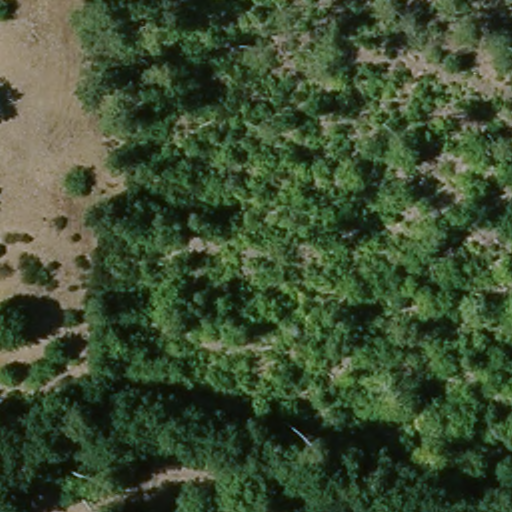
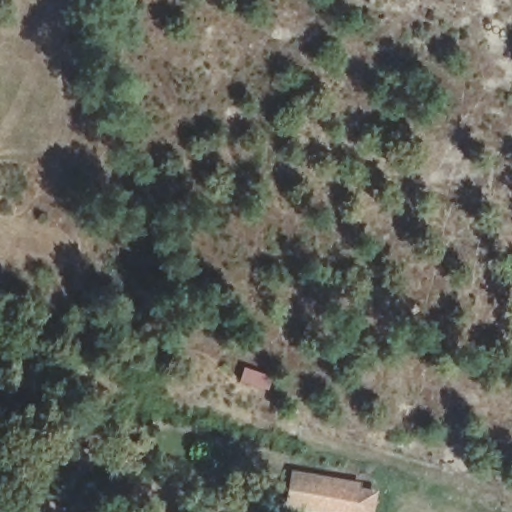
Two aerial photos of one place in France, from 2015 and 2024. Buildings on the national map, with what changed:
new [(372,484),(366,512),(345,512),(284,505),(291,469),(372,484)]

